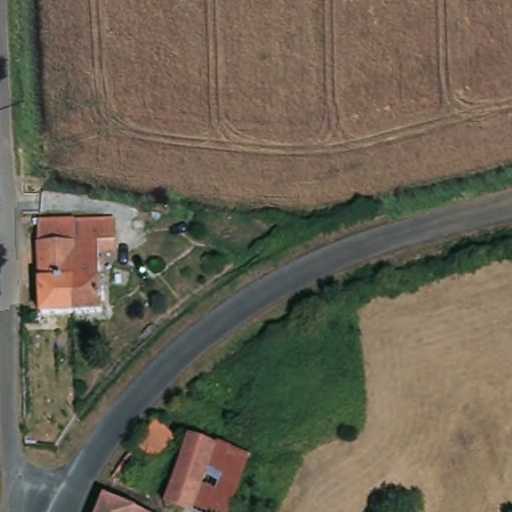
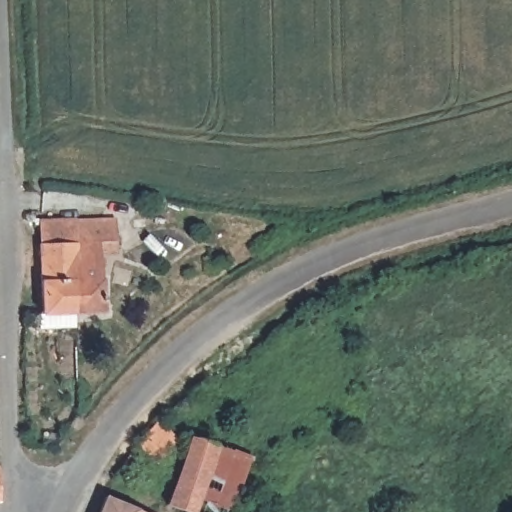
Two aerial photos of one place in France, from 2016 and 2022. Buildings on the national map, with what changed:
unchanged [(74,220),(74,277),(68,277),(69,311),(42,312),(42,220),(74,220)]
unchanged [(74,220),(99,220),(107,220),(108,230),(99,230),(99,311),(69,311),(68,277),(74,277),(74,220)]
unchanged [(178,441),(156,467),(151,465),(130,488),(114,474),(116,470),(159,422),(178,441)]
unchanged [(219,445),(195,512),(167,502),(193,435),(219,445)]
unchanged [(248,512),(196,512),(195,512),(219,445),(267,462),(248,512)]
unchanged [(1,467),(2,502),(0,502),(0,467),(1,467)]
unchanged [(99,512),(105,497),(145,512),(99,512)]

